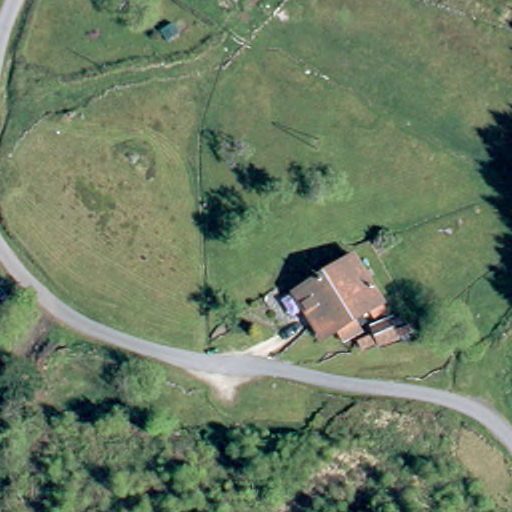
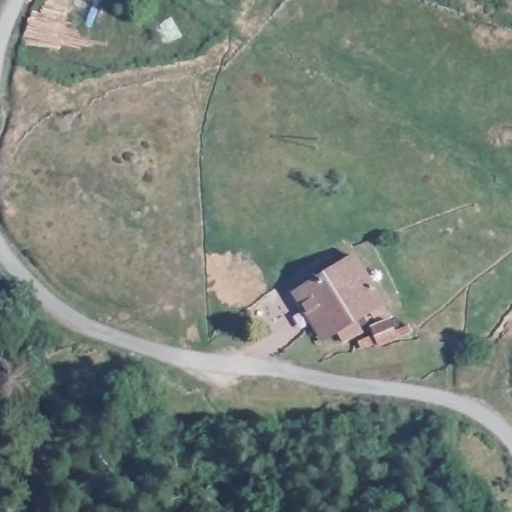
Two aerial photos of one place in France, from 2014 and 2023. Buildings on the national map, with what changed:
unchanged [(327,351),(324,349),(321,343),(315,346),(285,302),(299,294),(324,279),(345,267),(374,313),(339,333),(344,343),(327,351)]
unchanged [(379,332),(384,346),(382,349),(367,354),(362,338),(379,332)]
unchanged [(350,347),(357,344),(360,350),(358,353),(353,355),(350,347)]

